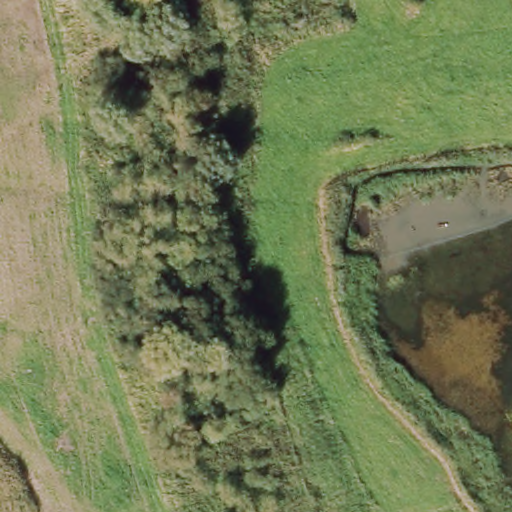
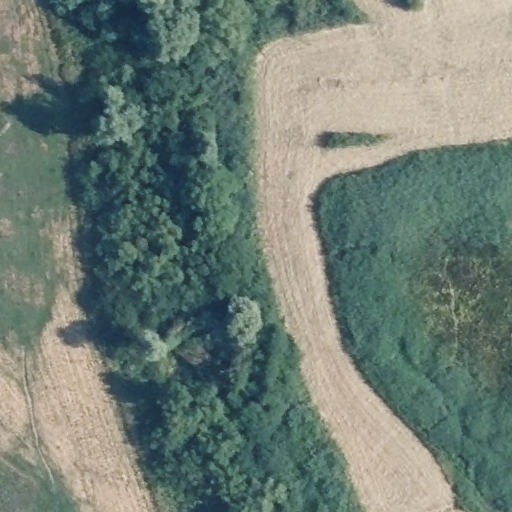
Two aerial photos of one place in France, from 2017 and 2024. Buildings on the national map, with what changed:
[]

